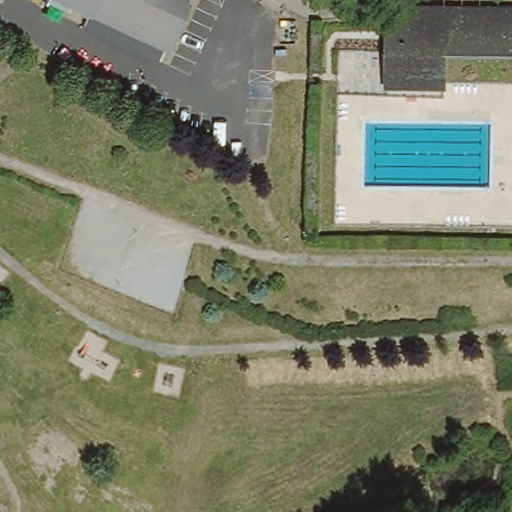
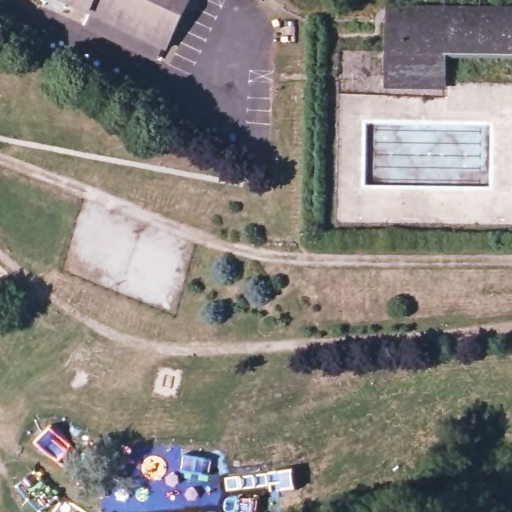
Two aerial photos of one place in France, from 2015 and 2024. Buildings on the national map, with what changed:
unchanged [(168,55),(90,14),(58,0),(192,0),(168,55)]
unchanged [(440,85),(387,83),(388,51),(388,20),(388,5),(512,9),(512,60),(442,58),(440,85)]

